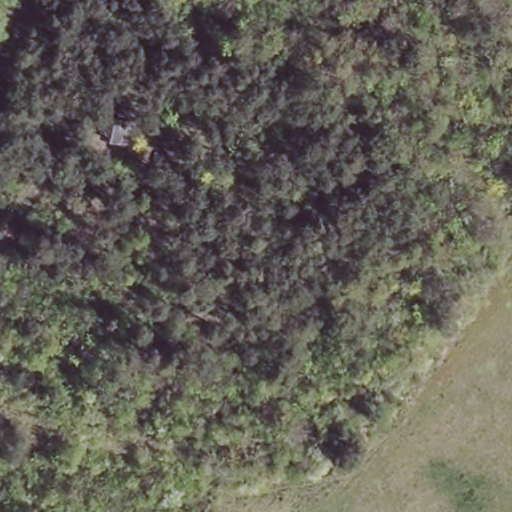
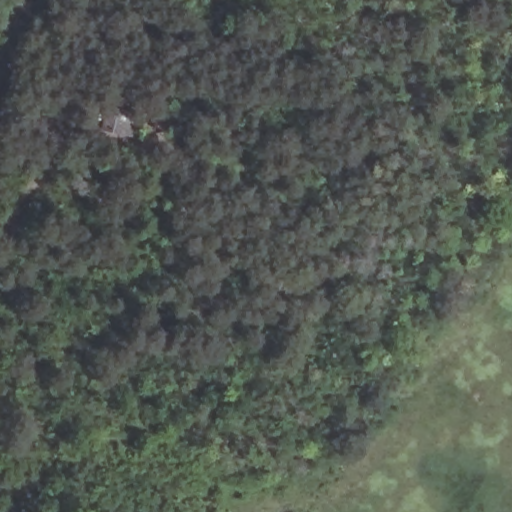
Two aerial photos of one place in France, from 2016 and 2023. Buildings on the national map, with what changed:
unchanged [(109,105),(138,106),(134,135),(106,132),(109,105)]

